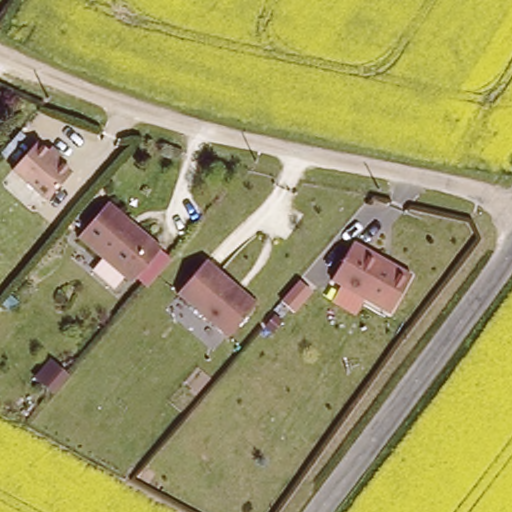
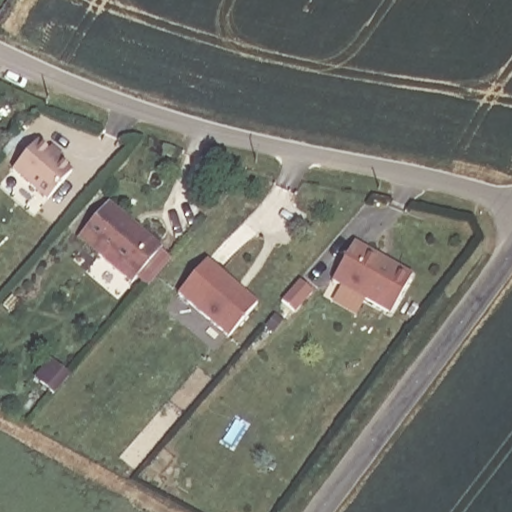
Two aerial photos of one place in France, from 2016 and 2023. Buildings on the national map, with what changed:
unchanged [(48,201),(14,172),(37,145),(48,155),(52,150),(62,158),(58,162),(71,174),(48,201)]
unchanged [(160,250),(132,283),(81,240),(109,206),(160,250)]
unchanged [(473,217),(480,215),(485,226),(477,229),(473,217)]
unchanged [(409,278),(388,316),(330,285),(351,246),(409,278)]
unchanged [(178,295),(207,262),(255,305),(226,337),(178,295)]
unchanged [(296,280),(307,290),(291,308),(280,299),(296,280)]
unchanged [(52,396),(38,385),(32,380),(48,361),(54,367),(68,378),(52,396)]

